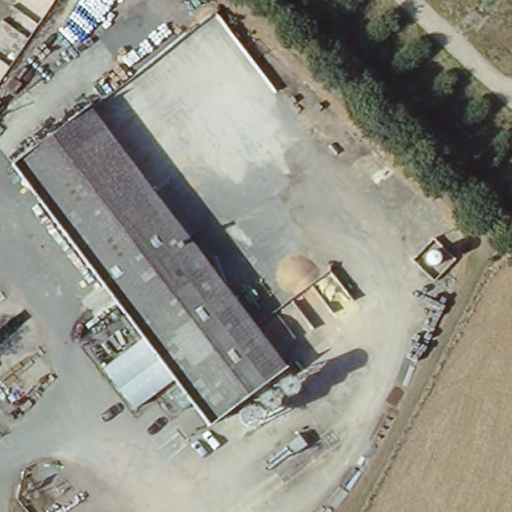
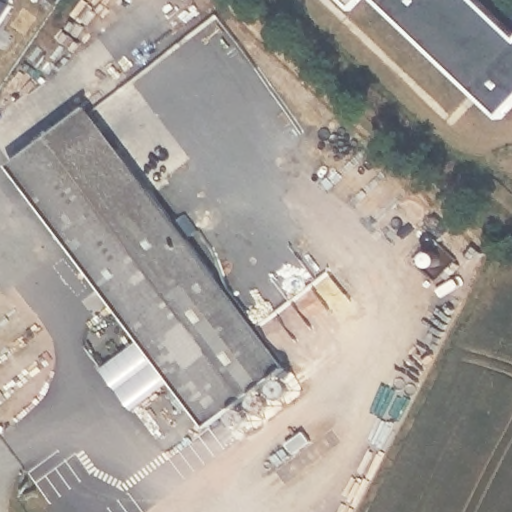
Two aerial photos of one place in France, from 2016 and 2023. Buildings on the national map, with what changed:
new [(10,2),(13,4),(0,22),(0,0),(11,0),(10,2)]
new [(350,8),(342,0),(358,0),(350,8)]
new [(378,0),(476,0),(512,35),(512,105),(501,116),(378,0)]
unchanged [(288,370),(212,428),(15,173),(92,113),(288,370)]

